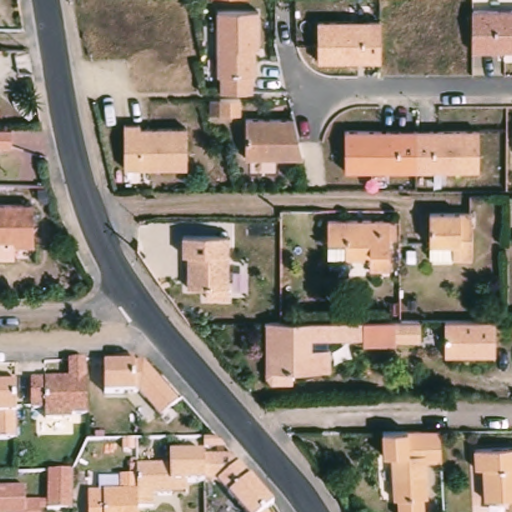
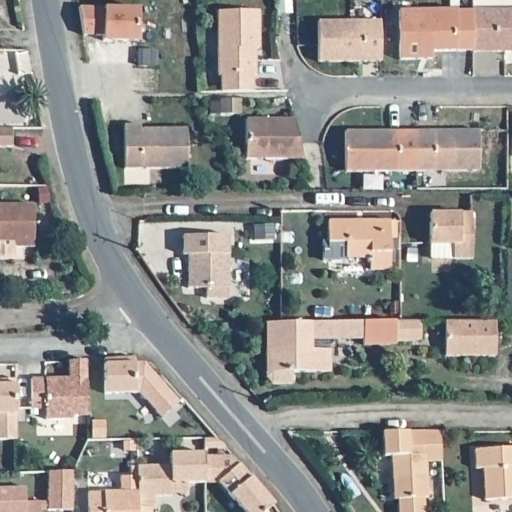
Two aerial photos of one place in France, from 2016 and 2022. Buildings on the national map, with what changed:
unchanged [(207,1),(207,0),(243,0),(243,2),(207,1)]
new [(132,10),(131,43),(96,42),(96,37),(76,36),(72,9),(132,10)]
new [(471,10),(512,10),(512,51),(471,50),(432,51),(431,60),(399,60),(399,10),(471,10)]
unchanged [(256,11),(257,50),(252,49),(253,76),(250,76),(250,91),(219,92),(218,76),(216,76),(214,11),(256,11)]
demolished [(471,51),(471,14),(512,13),(512,51),(471,51)]
unchanged [(315,22),(380,21),(381,59),(316,61),(315,22)]
unchanged [(293,120),(301,160),(244,160),(244,120),(293,120)]
unchanged [(124,123),(139,123),(140,127),(185,128),(186,167),(122,167),(124,123)]
unchanged [(12,146),(0,146),(0,125),(12,125),(12,146)]
unchanged [(342,130),(477,128),(477,172),(343,170),(342,130)]
unchanged [(0,204),(41,205),(41,246),(21,246),(21,258),(0,258),(0,204)]
unchanged [(474,264),(454,265),(454,250),(431,248),(431,219),(474,219),(474,264)]
unchanged [(391,276),(371,276),(371,265),(329,265),(329,226),(391,226),(391,276)]
unchanged [(185,234),(227,235),(226,288),(189,288),(185,234)]
unchanged [(362,345),(363,337),(307,337),(308,347),(327,346),(328,369),(291,371),(292,383),(271,385),(265,375),(262,324),(394,321),(394,319),(397,319),(419,320),(420,340),(395,341),(395,344),(362,345)]
unchanged [(474,320),(494,321),(493,355),(444,355),(444,320),(474,320)]
unchanged [(84,416),(70,416),(70,420),(44,420),(44,410),(29,410),(29,380),(66,380),(65,361),(82,360),(84,416)]
unchanged [(136,394),(103,393),(101,365),(144,365),(175,399),(159,417),(136,394)]
unchanged [(14,441),(0,441),(0,380),(13,380),(14,438),(14,441)]
unchanged [(399,501),(395,501),(392,458),(384,458),(383,434),(386,434),(440,433),(442,463),(427,464),(429,499),(424,500),(425,512),(400,512),(399,501)]
unchanged [(223,447),(200,448),(200,437),(215,437),(223,447)]
unchanged [(481,503),(480,470),(472,470),(471,450),(512,448),(512,501),(481,503)]
unchanged [(169,493),(169,495),(150,496),(151,507),(135,507),(134,477),(134,467),(172,466),(171,453),(200,453),(201,458),(201,482),(184,483),(185,493),(169,493)]
unchanged [(217,481),(237,464),(272,505),(264,511),(265,512),(243,512),(217,481)]
unchanged [(73,470),(73,510),(49,510),(49,470),(73,470)]
unchanged [(135,507),(135,512),(86,512),(86,493),(118,493),(117,477),(134,477),(135,507)]
unchanged [(27,503),(42,503),(42,512),(0,512),(0,489),(26,488),(27,503)]

